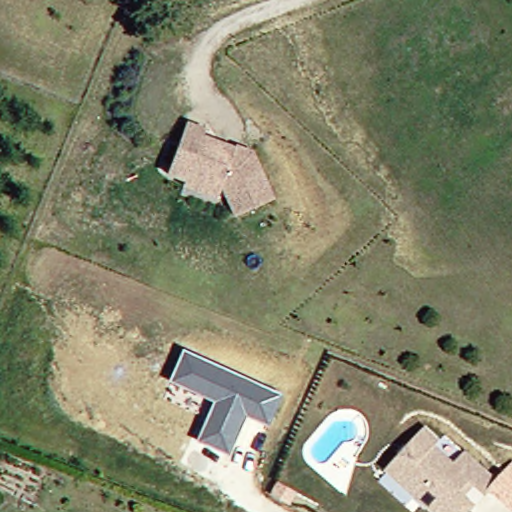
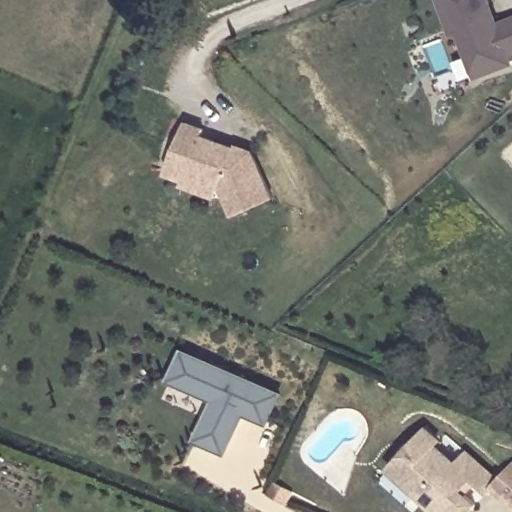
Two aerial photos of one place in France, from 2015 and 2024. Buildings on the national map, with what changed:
new [(493,19),(496,28),(512,22),(512,56),(508,57),(511,66),(476,80),(459,35),(453,37),(438,0),(486,0),(488,7),(493,19)]
unchanged [(184,183),(185,179),(167,171),(186,120),(205,126),(202,134),(235,145),(235,143),(251,149),(272,195),(235,212),(225,191),(219,194),(184,183)]
unchanged [(182,350),(282,395),(269,425),(245,416),(228,455),(195,441),(214,401),(169,381),(182,350)]
unchanged [(433,445),(453,463),(464,452),(496,481),(485,494),(469,479),(459,490),(475,504),(467,512),(435,512),(398,478),(388,469),(407,448),(425,428),(438,440),(433,445)]
unchanged [(512,465),(512,510),(490,490),(496,481),(512,465)]

